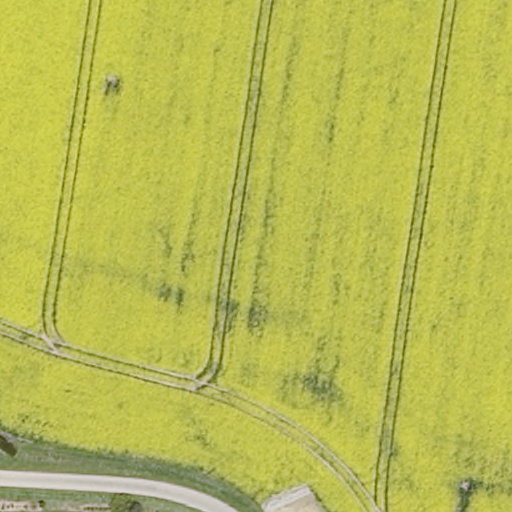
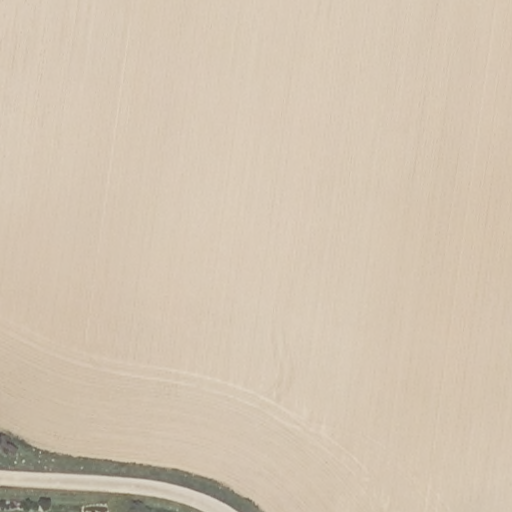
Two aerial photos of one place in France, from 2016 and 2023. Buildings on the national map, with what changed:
[]

